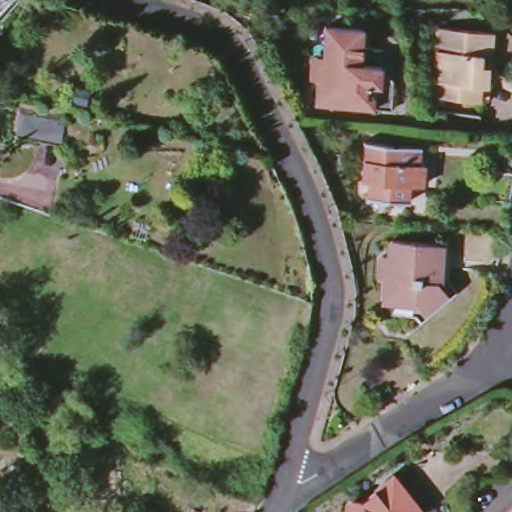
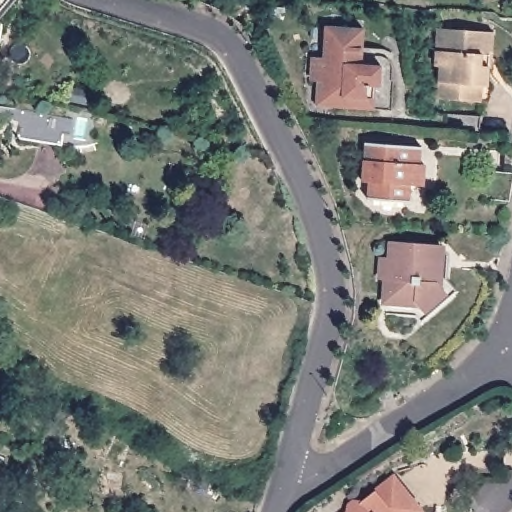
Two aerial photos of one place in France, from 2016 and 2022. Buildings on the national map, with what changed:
unchanged [(0,2),(0,0),(2,0),(0,2)]
unchanged [(7,9),(0,16),(0,2),(7,9)]
unchanged [(435,78),(440,24),(485,27),(493,27),(491,65),(484,64),(482,81),(493,82),(488,99),(438,96),(440,79),(435,78)]
unchanged [(314,104),(317,77),(322,77),(325,26),(363,28),(360,64),(381,67),(380,86),(375,86),(373,110),(314,104)]
unchanged [(433,126),(435,109),(482,114),(482,130),(433,126)]
unchanged [(13,136),(18,110),(61,117),(57,144),(13,136)]
unchanged [(369,195),(370,179),(362,178),(365,140),(422,144),(420,161),(422,161),(421,184),(409,183),(408,198),(369,195)]
unchanged [(512,149),(512,165),(511,173),(505,171),(506,149),(512,149)]
unchanged [(483,156),(494,156),(492,170),(511,173),(510,200),(479,197),(483,156)]
unchanged [(496,231),(495,255),(487,261),(462,259),(464,228),(496,231)]
unchanged [(390,313),(392,280),(386,279),(387,258),(395,258),(396,241),(444,245),(443,263),(448,263),(447,284),(440,283),(450,292),(430,315),(415,304),(415,315),(390,313)]
unchanged [(348,509),(349,506),(352,503),(354,501),(357,501),(360,501),(364,500),(397,476),(416,500),(410,512),(348,512),(348,511),(348,509)]

